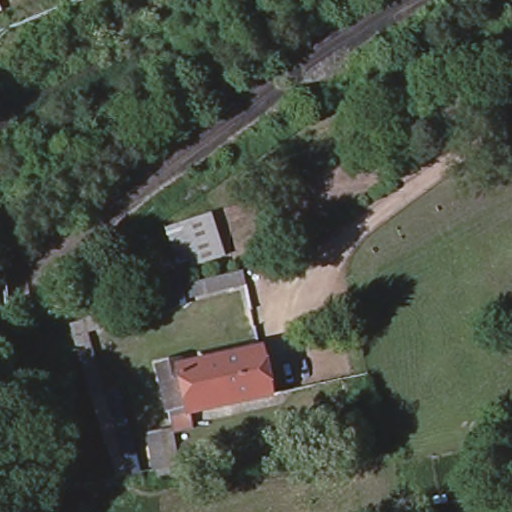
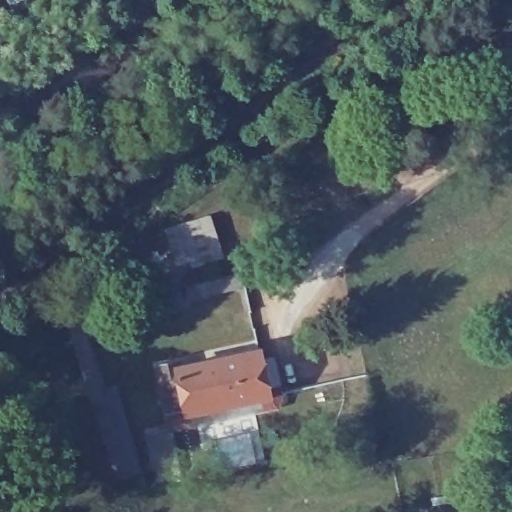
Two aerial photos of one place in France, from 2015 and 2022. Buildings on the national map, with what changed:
unchanged [(224,256),(201,262),(177,268),(165,227),(190,219),(211,213),(224,256)]
unchanged [(242,271),(246,287),(190,300),(185,284),(242,271)]
unchanged [(87,333),(104,393),(118,389),(140,471),(115,477),(107,445),(104,445),(91,396),(87,397),(67,324),(83,320),(82,316),(140,301),(137,283),(176,272),(185,306),(145,317),(145,319),(87,333)]
unchanged [(257,347),(267,395),(225,403),(214,356),(257,347)]
unchanged [(174,356),(175,363),(214,356),(225,403),(182,411),(182,405),(164,409),(155,360),(174,356)]

